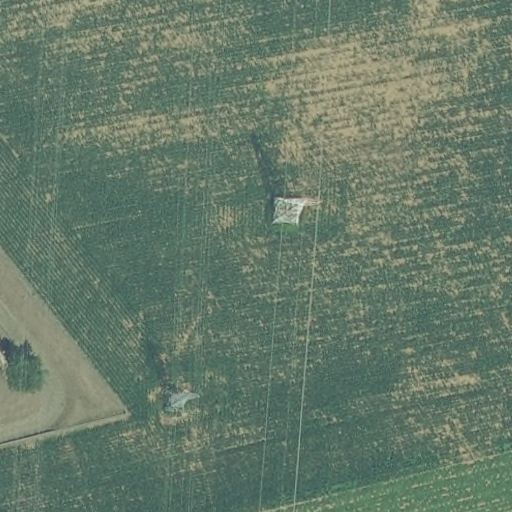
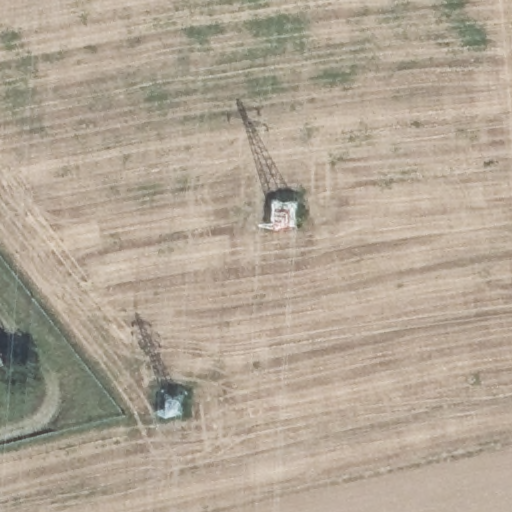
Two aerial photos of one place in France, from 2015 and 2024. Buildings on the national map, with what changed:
[]

